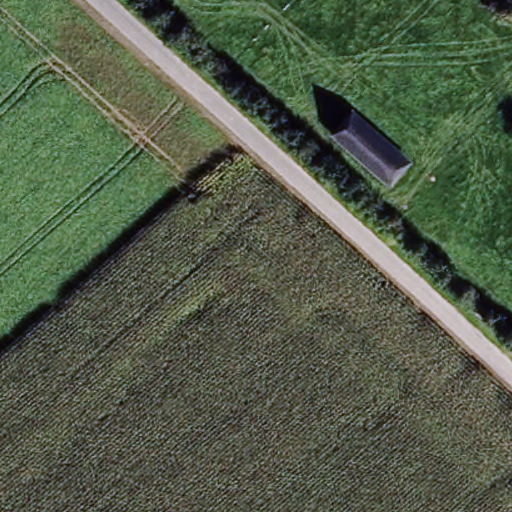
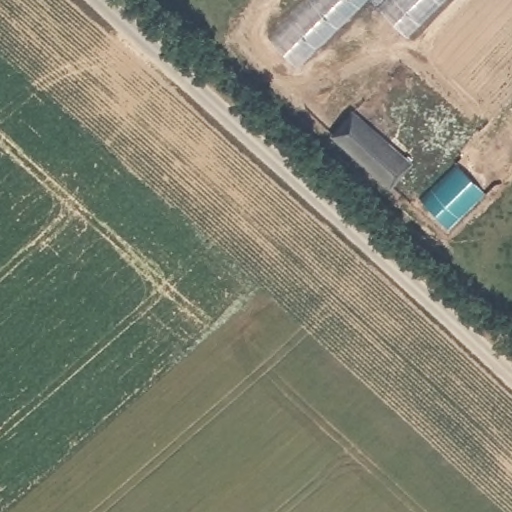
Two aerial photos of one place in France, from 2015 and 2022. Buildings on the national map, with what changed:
new [(366,0),(296,68),(268,37),(306,0),(366,0)]
new [(447,0),(409,38),(378,7),(385,0),(447,0)]
unchanged [(392,187),(348,148),(333,135),(355,109),(370,122),(415,161),(392,187)]

